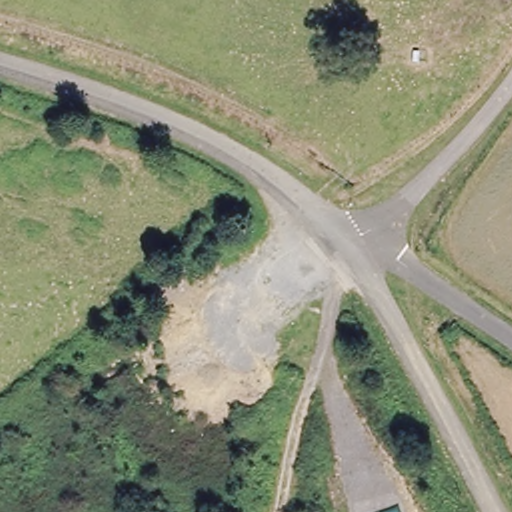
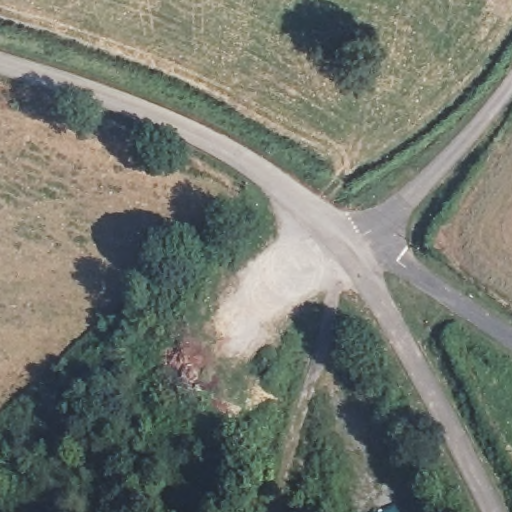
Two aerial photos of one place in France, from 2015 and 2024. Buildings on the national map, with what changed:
unchanged [(391,512),(397,510),(398,512),(391,512)]

